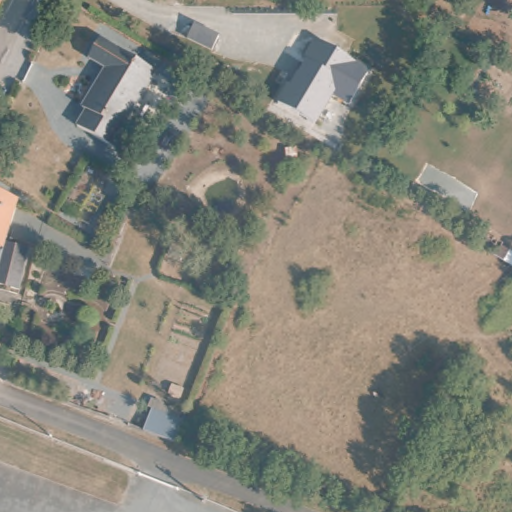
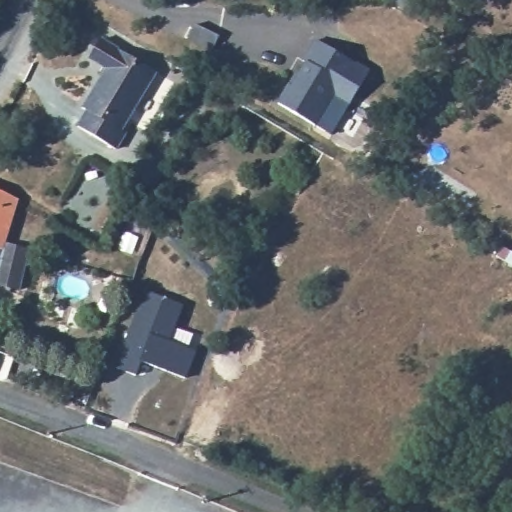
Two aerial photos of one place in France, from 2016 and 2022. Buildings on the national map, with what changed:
demolished [(212,26),(206,38),(191,29),(197,18),(212,26)]
unchanged [(211,40),(205,52),(190,43),(196,32),(211,40)]
unchanged [(145,70),(117,118),(124,121),(109,146),(70,123),(84,99),(77,95),(94,65),(81,58),(92,39),(145,70)]
unchanged [(349,98),(334,91),(315,123),(277,100),(310,42),(361,69),(349,98)]
unchanged [(29,263),(22,261),(16,288),(0,284),(0,188),(10,190),(15,194),(3,242),(26,248),(32,250),(29,263)]
unchanged [(92,250),(88,260),(38,245),(39,239),(44,219),(54,225),(92,250)]
new [(167,339),(195,351),(184,377),(140,361),(133,375),(114,369),(144,289),(181,304),(167,339)]
unchanged [(182,423),(177,436),(141,429),(147,410),(182,423)]

